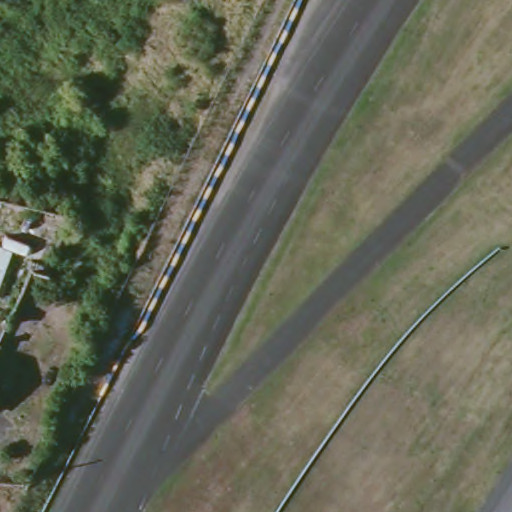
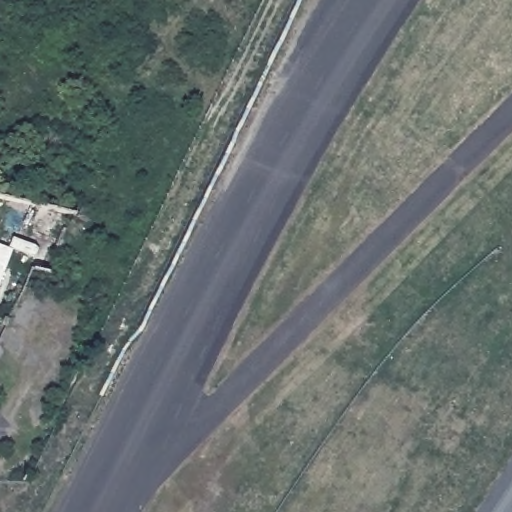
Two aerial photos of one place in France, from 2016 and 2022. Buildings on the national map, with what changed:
unchanged [(32,245),(30,254),(11,245),(0,272),(0,236),(1,234),(32,245)]

